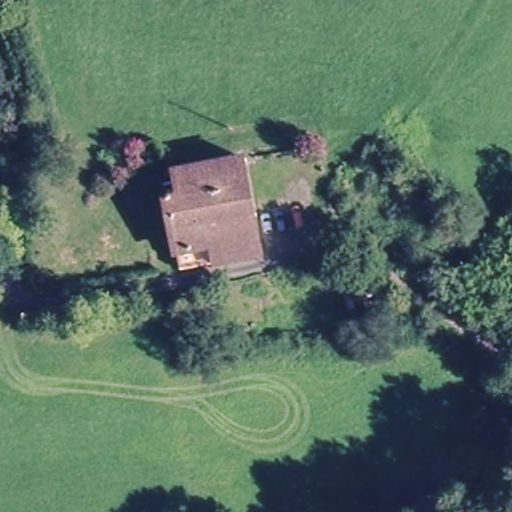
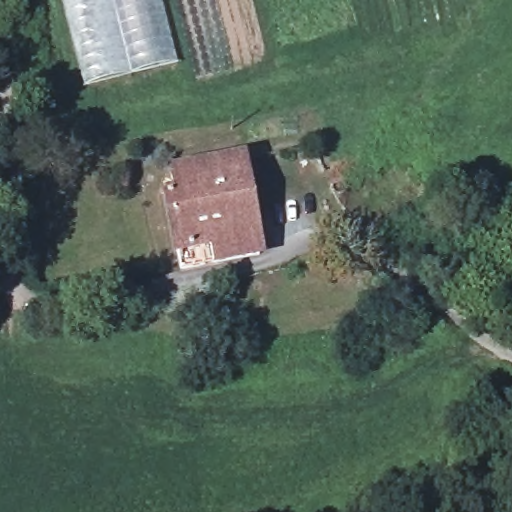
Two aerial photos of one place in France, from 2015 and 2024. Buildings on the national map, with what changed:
new [(83,86),(60,0),(162,0),(177,62),(83,86)]
unchanged [(182,165),(246,153),(265,252),(189,264),(171,190),(186,187),(182,165)]

